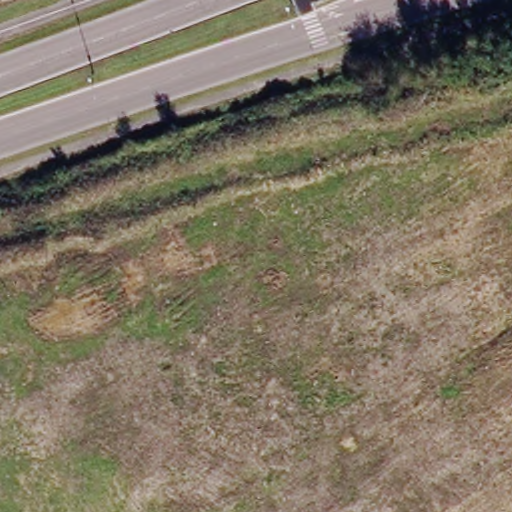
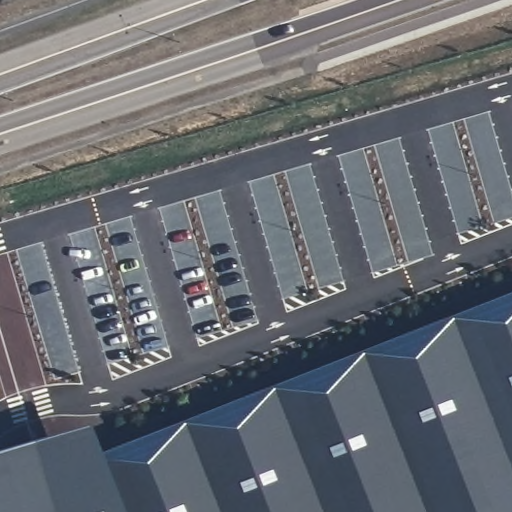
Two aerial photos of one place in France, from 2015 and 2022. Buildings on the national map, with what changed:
new [(4,503),(103,475),(96,455),(512,292),(512,512),(0,512),(0,483),(4,503)]

